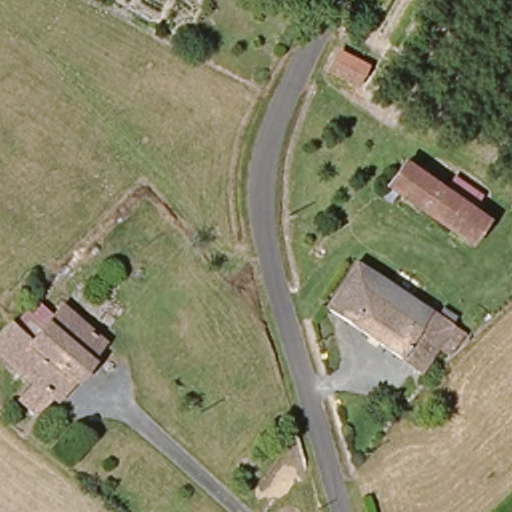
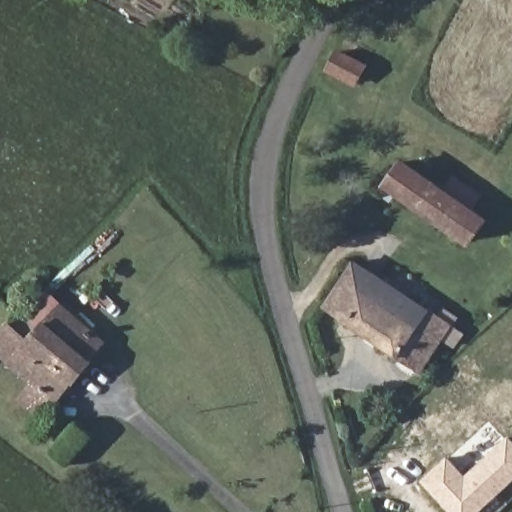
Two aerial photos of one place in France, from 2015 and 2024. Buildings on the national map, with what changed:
unchanged [(327,71),(343,40),(374,59),(361,86),(327,71)]
unchanged [(469,243),(402,196),(390,188),(404,169),(430,187),(441,171),(446,175),(483,198),(472,214),(482,221),(469,243)]
unchanged [(430,367),(338,305),(365,261),(432,306),(456,324),(430,367)]
unchanged [(6,360),(0,365),(0,341),(15,324),(35,344),(67,312),(106,344),(58,403),(6,360)]
new [(512,442),(512,479),(478,512),(453,512),(421,480),(445,458),(465,477),(508,437),(512,442)]

